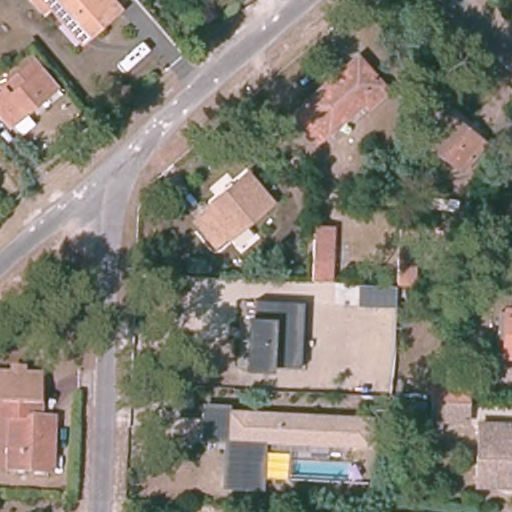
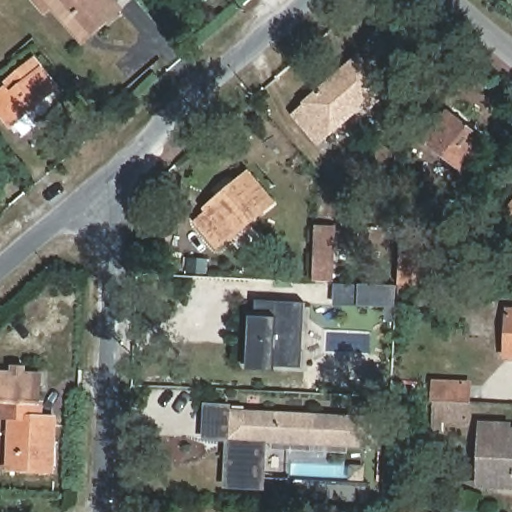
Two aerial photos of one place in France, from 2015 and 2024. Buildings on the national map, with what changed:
unchanged [(65,25),(50,8),(41,15),(32,4),(36,0),(102,0),(115,15),(92,34),(81,44),(65,25)]
unchanged [(367,111),(362,105),(315,146),(290,117),(347,66),(355,59),(363,67),(387,94),(367,111)]
unchanged [(53,90),(7,130),(0,121),(0,94),(9,87),(6,85),(30,64),(53,90)]
unchanged [(485,147),(462,175),(423,143),(443,115),(485,147)]
unchanged [(275,205),(236,238),(234,235),(219,248),(198,224),(213,210),(211,209),(250,175),(275,205)]
unchanged [(512,202),(512,220),(504,213),(512,202)]
unchanged [(401,279),(403,224),(418,224),(417,279),(401,279)]
unchanged [(331,234),(330,280),(316,279),(317,233),(331,234)]
unchanged [(289,236),(287,268),(255,267),(258,234),(289,236)]
unchanged [(398,308),(356,306),(356,283),(399,285),(398,308)]
unchanged [(301,368),(274,366),(273,373),(244,371),(247,316),(255,316),(255,300),(306,303),(301,368)]
unchanged [(510,313),(512,313),(512,358),(506,358),(510,313)]
unchanged [(47,421),(52,421),(50,474),(5,472),(8,404),(0,404),(0,376),(20,377),(20,370),(32,370),(31,378),(49,378),(47,421)]
unchanged [(446,418),(446,429),(433,429),(433,400),(434,378),(470,379),(469,402),(468,420),(446,418)]
unchanged [(379,439),(378,449),(367,448),(367,458),(270,452),(270,455),(268,490),(236,489),(239,441),(213,440),(215,407),(240,408),(240,415),(380,422),(379,439)]
unchanged [(475,486),(477,427),(499,427),(498,433),(512,433),(512,488),(500,487),(475,486)]

